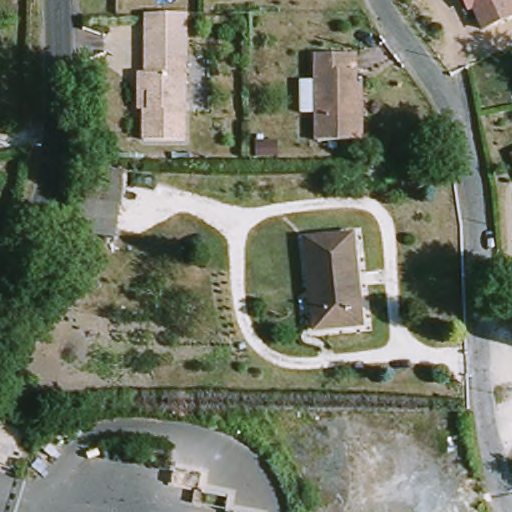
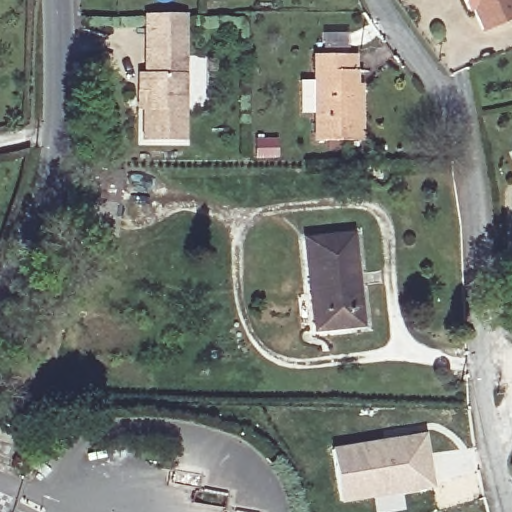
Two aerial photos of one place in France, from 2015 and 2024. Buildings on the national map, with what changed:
unchanged [(512,22),(483,36),(472,12),(468,14),(461,0),(512,0),(512,22)]
unchanged [(361,122),(361,145),(315,145),(313,60),(355,59),(355,90),(361,91),(361,122)]
unchanged [(139,96),(139,78),(145,78),(145,60),(185,60),(185,145),(144,145),(144,115),(139,115),(139,96)]
unchanged [(74,166),(125,170),(118,240),(66,232),(74,166)]
unchanged [(348,236),(361,326),(315,332),(302,243),(348,236)]
new [(397,437),(425,432),(435,484),(344,500),(335,449),(387,440),(397,437)]

